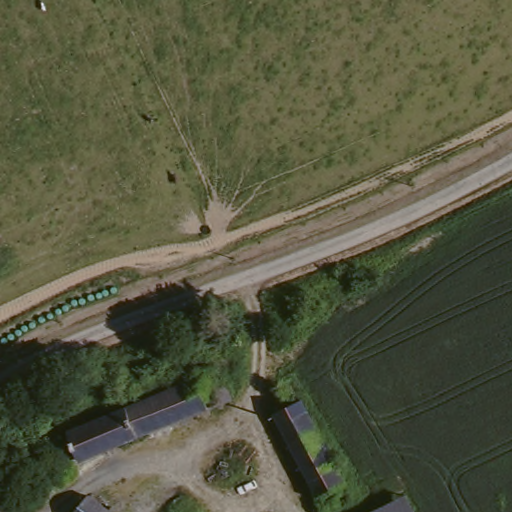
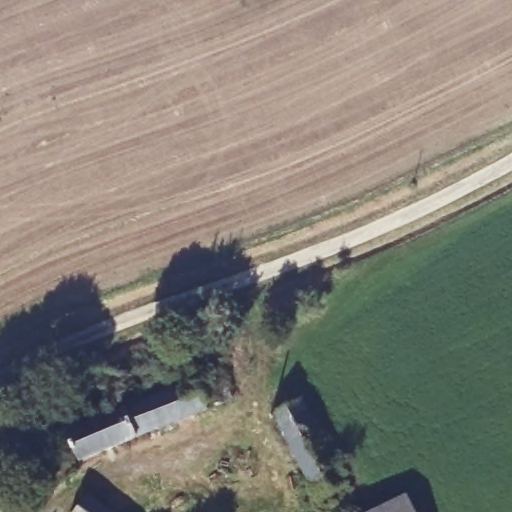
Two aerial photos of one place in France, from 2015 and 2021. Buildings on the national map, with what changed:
unchanged [(225,396),(86,458),(73,428),(214,368),(225,396)]
unchanged [(347,478),(320,492),(278,413),(305,398),(347,478)]
unchanged [(356,512),(413,481),(431,512),(356,512)]
unchanged [(77,512),(91,493),(116,512),(77,512)]
unchanged [(136,512),(128,512),(131,508),(136,512)]

